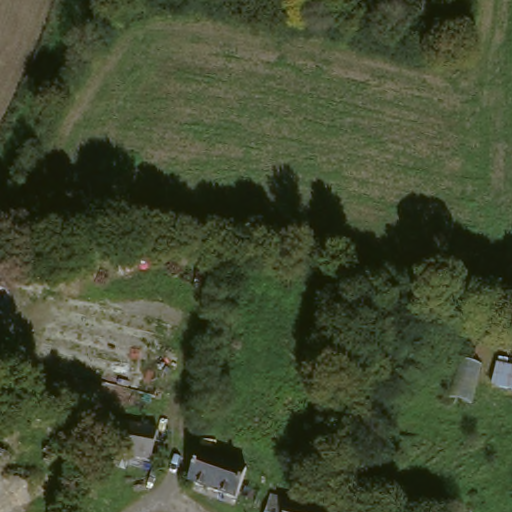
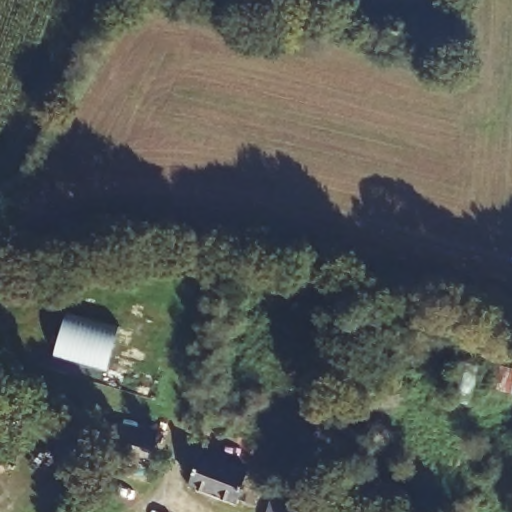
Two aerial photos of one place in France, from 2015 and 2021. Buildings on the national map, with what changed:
new [(67,314),(118,329),(109,364),(57,350),(67,314)]
unchanged [(102,422),(135,431),(161,437),(152,468),(94,451),(102,422)]
unchanged [(234,503),(191,487),(202,458),(212,463),(245,477),(234,503)]
unchanged [(345,508),(344,512),(286,512),(290,495),(320,502),(330,504),(345,508)]

